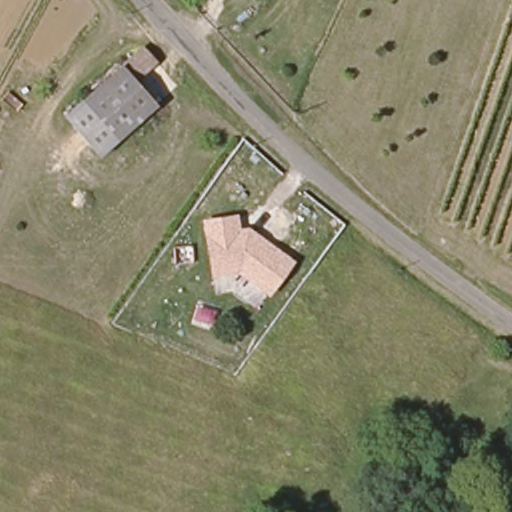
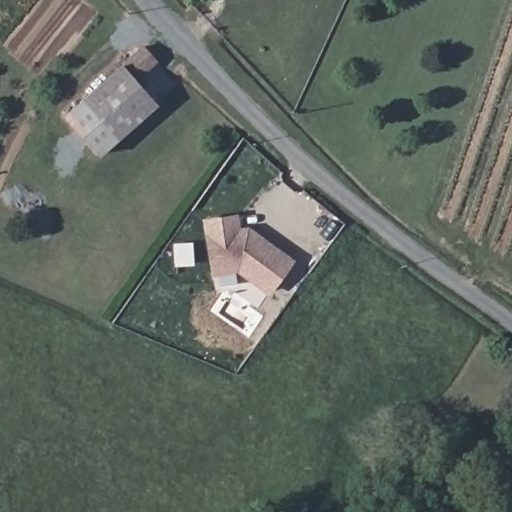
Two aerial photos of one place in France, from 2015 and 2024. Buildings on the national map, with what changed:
unchanged [(151,54),(131,73),(152,96),(97,148),(65,111),(138,41),(151,54)]
unchanged [(266,291),(234,268),(210,271),(204,218),(234,215),(236,230),(242,230),(251,236),(287,261),(266,291)]

